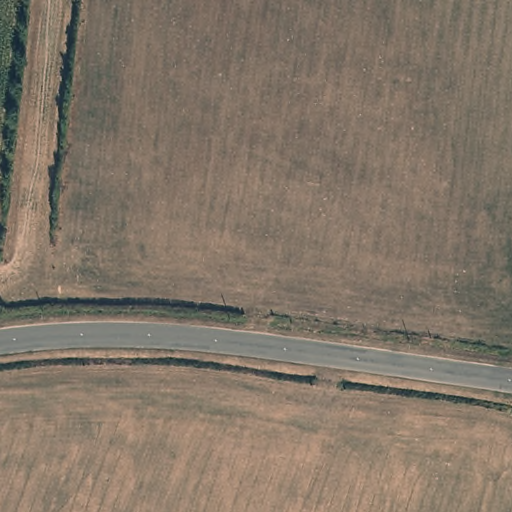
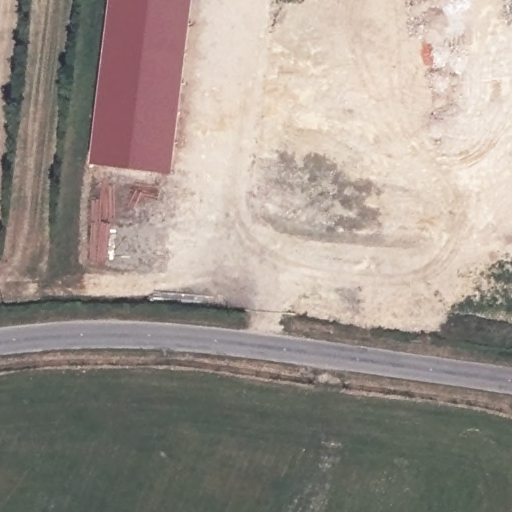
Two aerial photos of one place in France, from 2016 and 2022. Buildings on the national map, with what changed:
new [(109,0),(192,0),(171,173),(89,163),(109,0)]

